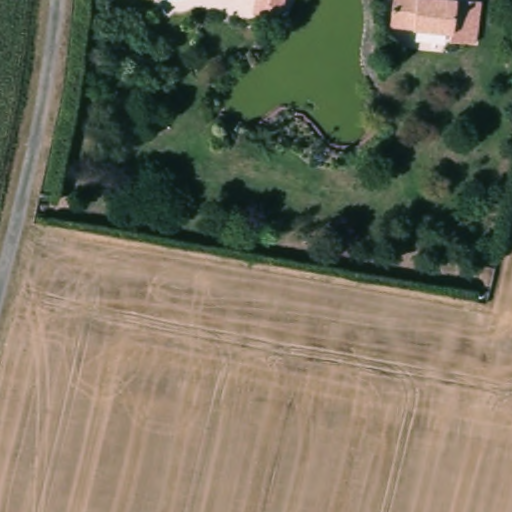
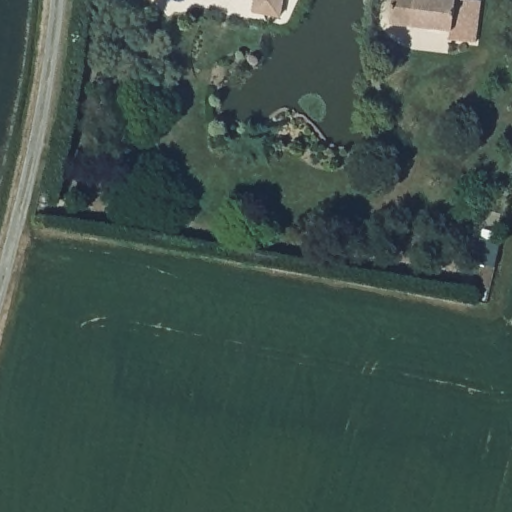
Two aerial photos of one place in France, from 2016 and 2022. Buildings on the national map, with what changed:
unchanged [(279,15),(252,9),(254,0),(282,0),(279,15)]
unchanged [(467,41),(448,39),(450,30),(392,24),(395,0),(472,0),(467,41)]

